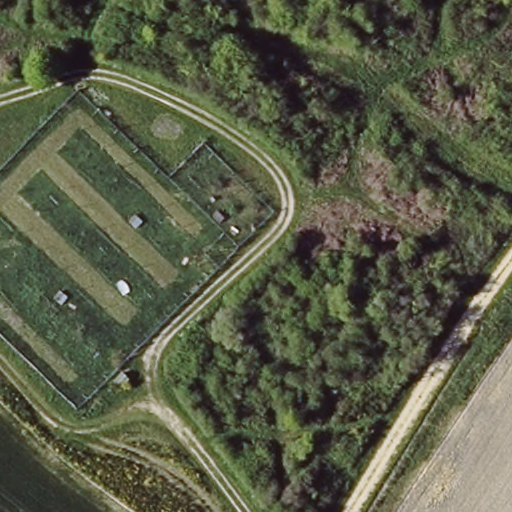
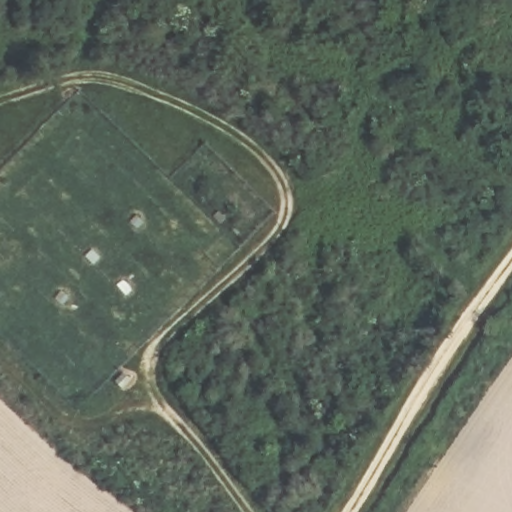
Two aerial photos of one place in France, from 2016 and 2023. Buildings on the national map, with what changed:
[]

